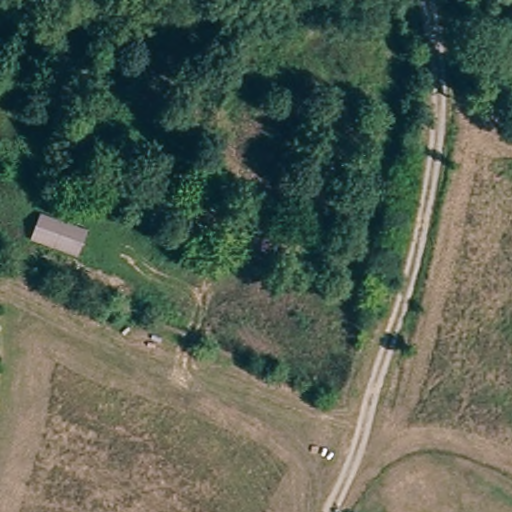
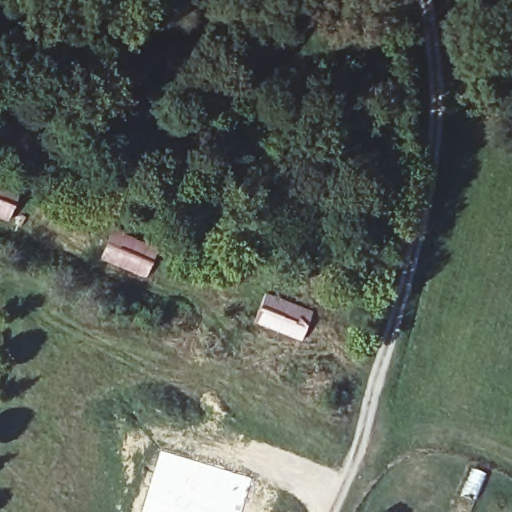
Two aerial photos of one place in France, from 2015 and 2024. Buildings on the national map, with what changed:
new [(87,230),(77,257),(31,240),(41,214),(87,230)]
new [(165,255),(155,282),(108,265),(118,239),(165,255)]
new [(255,478),(245,512),(144,512),(164,450),(255,478)]

